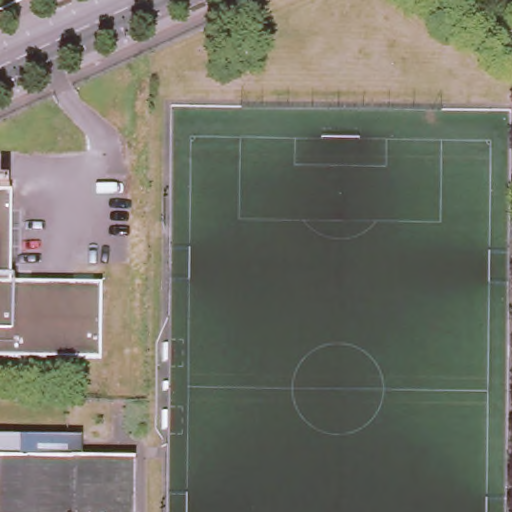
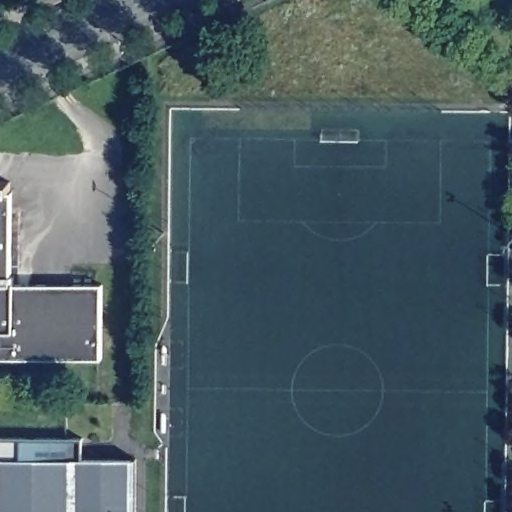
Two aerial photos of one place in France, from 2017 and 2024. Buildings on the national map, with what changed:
unchanged [(15,179),(14,189),(5,189),(5,179),(15,179)]
unchanged [(15,191),(14,282),(0,282),(0,191),(15,191)]
unchanged [(103,283),(103,357),(0,356),(0,282),(14,282),(103,283)]
unchanged [(29,440),(85,439),(85,462),(0,462),(0,440),(29,440)]
unchanged [(85,462),(137,462),(137,512),(0,512),(0,462),(85,462)]

